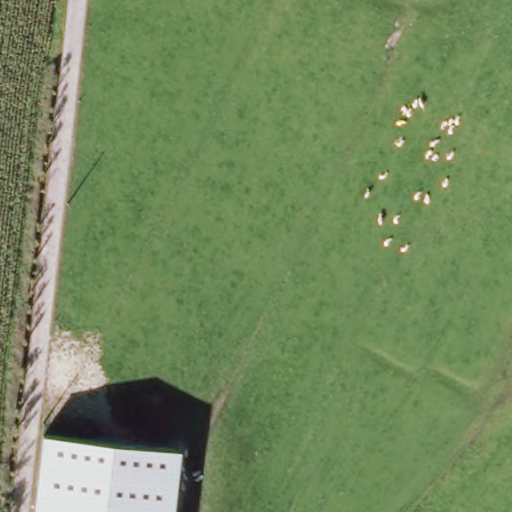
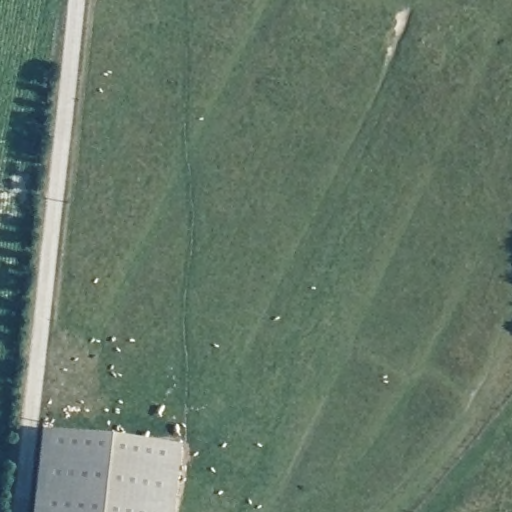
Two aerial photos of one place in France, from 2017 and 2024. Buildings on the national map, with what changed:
unchanged [(42,435),(180,450),(173,512),(34,512),(42,435)]

